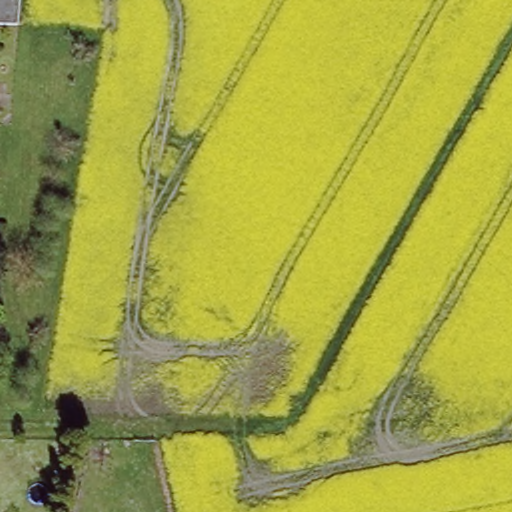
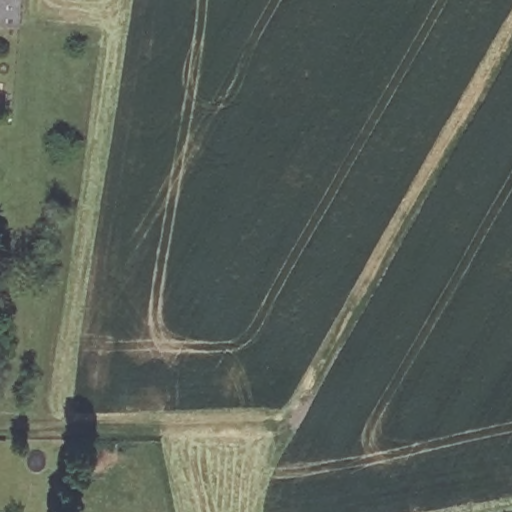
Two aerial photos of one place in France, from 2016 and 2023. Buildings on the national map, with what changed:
unchanged [(21,23),(0,23),(0,0),(23,0),(21,23)]

